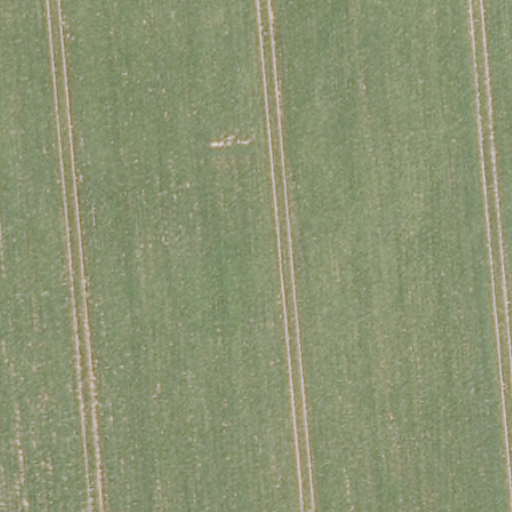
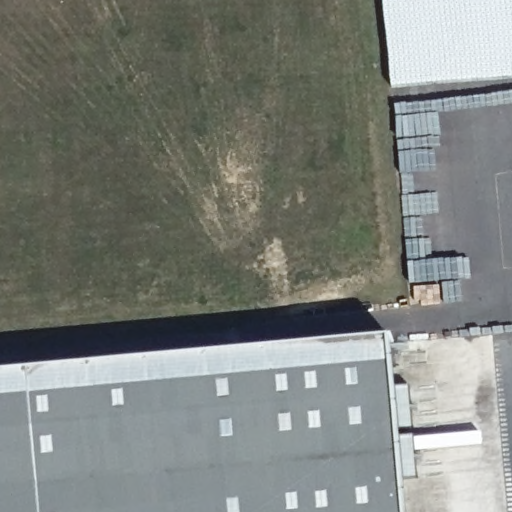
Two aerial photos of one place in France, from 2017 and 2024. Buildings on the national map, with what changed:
new [(406,512),(0,512),(0,380),(390,343),(406,512)]

